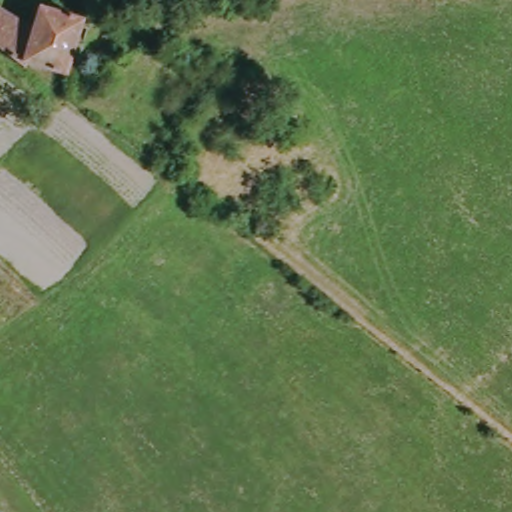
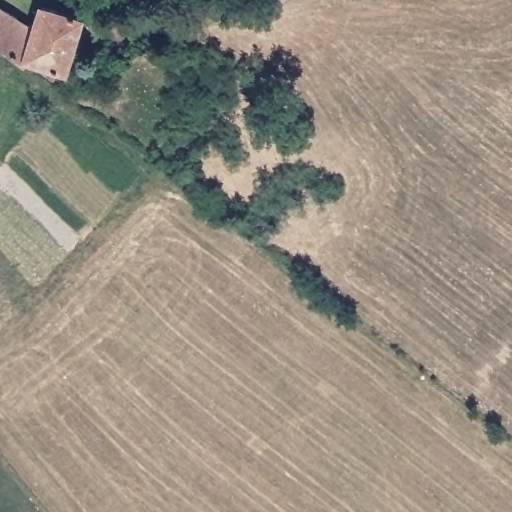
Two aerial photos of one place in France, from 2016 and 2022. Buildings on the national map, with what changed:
unchanged [(29,72),(0,48),(0,8),(37,34),(31,62),(29,72)]
unchanged [(90,22),(78,75),(31,62),(37,34),(41,9),(90,22)]

